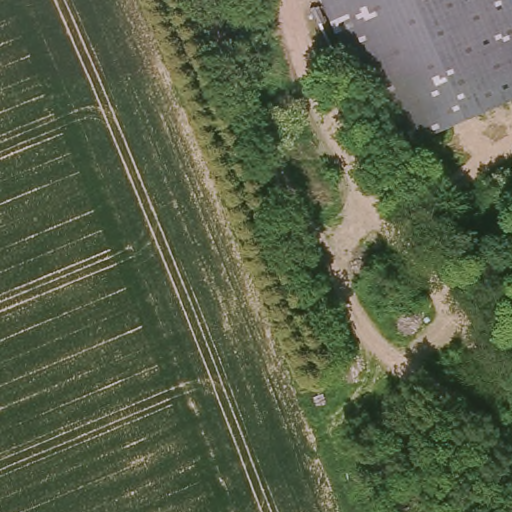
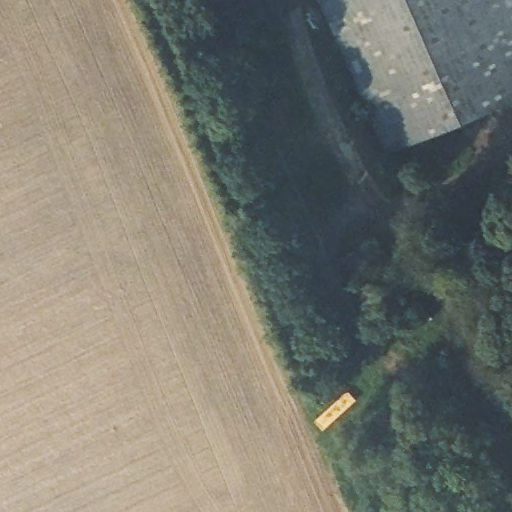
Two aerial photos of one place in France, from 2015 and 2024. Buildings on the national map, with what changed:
unchanged [(392,155),(322,0),(511,0),(512,1),(512,102),(392,155)]

